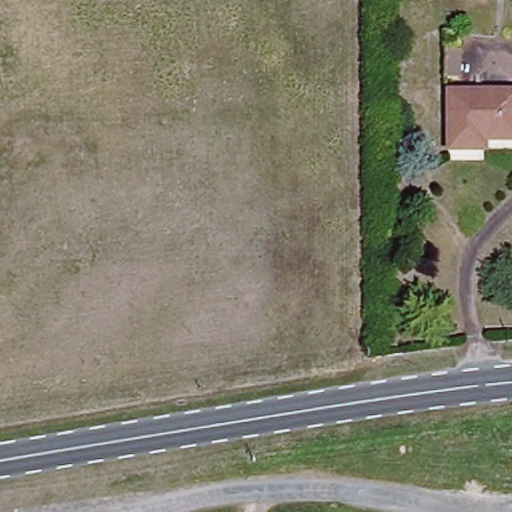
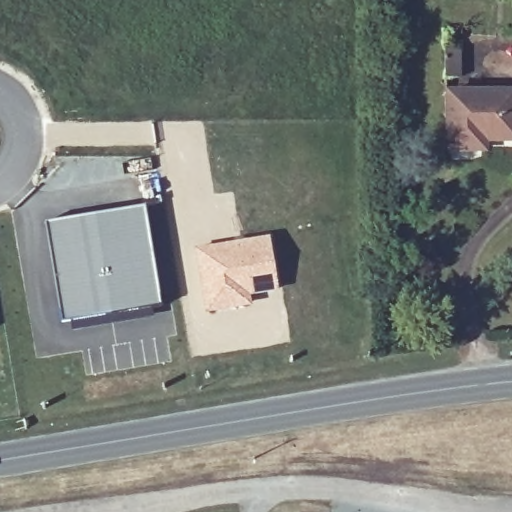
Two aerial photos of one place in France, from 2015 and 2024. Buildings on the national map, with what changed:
unchanged [(462,79),(444,79),(446,50),(463,50),(462,79)]
unchanged [(511,108),(512,108),(512,146),(479,143),(479,155),(446,154),(447,91),(511,93),(511,108)]
new [(144,207),(158,306),(58,321),(45,221),(144,207)]
new [(268,241),(274,290),(244,295),(245,305),(204,311),(196,252),(268,241)]

